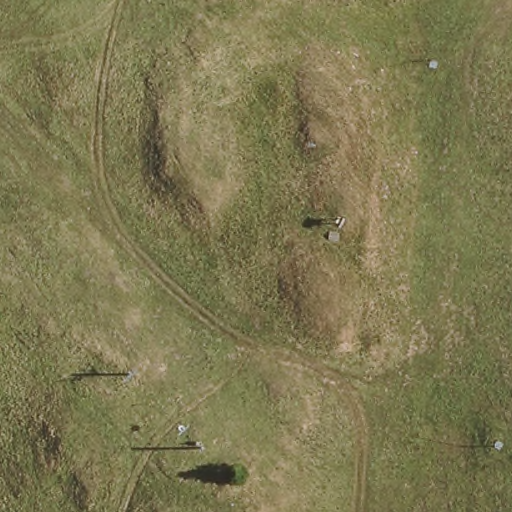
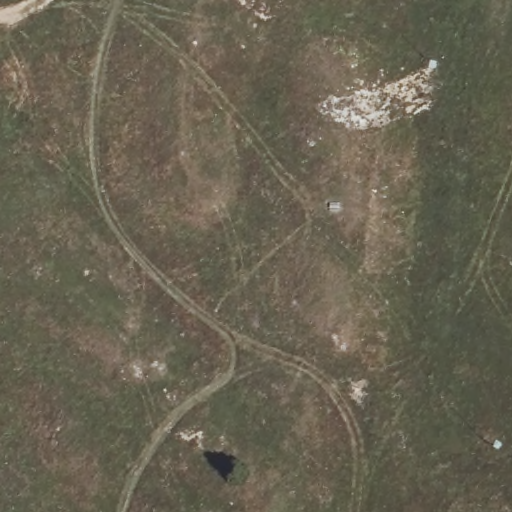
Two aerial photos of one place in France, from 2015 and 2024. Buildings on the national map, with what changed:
[]

